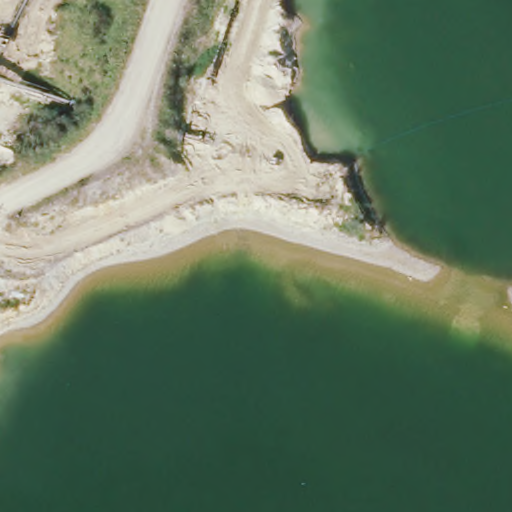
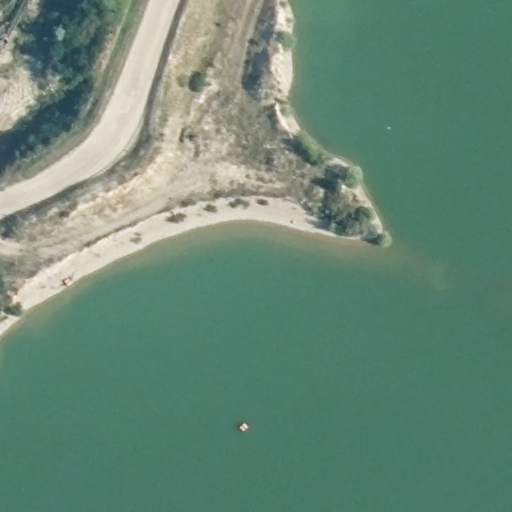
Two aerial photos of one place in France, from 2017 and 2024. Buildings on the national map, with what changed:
[]

